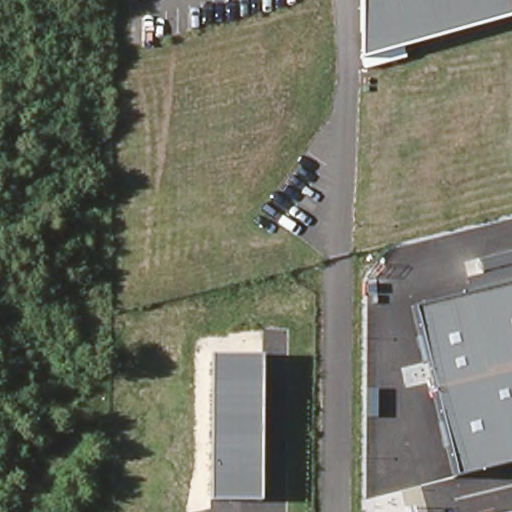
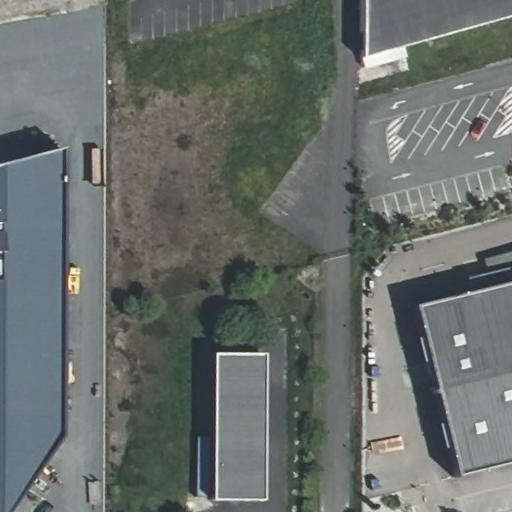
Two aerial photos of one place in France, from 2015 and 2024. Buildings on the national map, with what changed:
unchanged [(362,57),(361,0),(512,0),(512,16),(362,57)]
new [(0,164),(60,148),(59,436),(4,512),(0,512),(0,164)]
unchanged [(512,284),(512,463),(455,477),(414,307),(512,284)]
unchanged [(262,499),(213,499),(213,354),(263,354),(262,499)]

